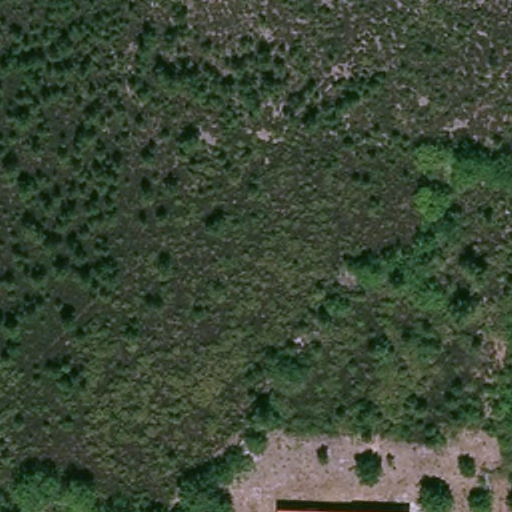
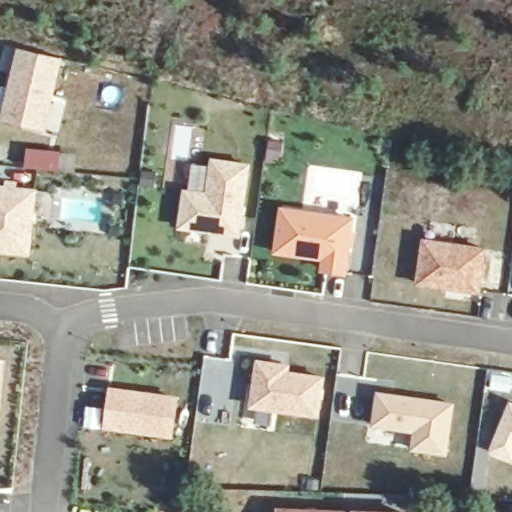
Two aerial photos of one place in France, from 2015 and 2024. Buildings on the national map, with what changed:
new [(0,120),(16,47),(61,56),(43,130),(0,120)]
new [(177,229),(182,190),(205,192),(209,158),(248,164),(238,236),(177,229)]
new [(0,185),(37,189),(28,255),(0,253),(0,185)]
new [(319,272),(320,260),(272,255),(278,206),(352,217),(345,276),(319,272)]
new [(415,284),(421,240),(485,247),(479,293),(415,284)]
new [(248,407),(255,360),(289,365),(289,372),(323,377),(317,417),(248,407)]
new [(108,387),(177,397),(171,438),(102,430),(108,387)]
new [(410,451),(412,433),(370,427),(375,391),(453,403),(445,454),(410,451)]
new [(487,450),(509,401),(512,403),(512,461),(487,450)]
unchanged [(355,510),(410,512),(276,512),(276,507),(355,510)]

